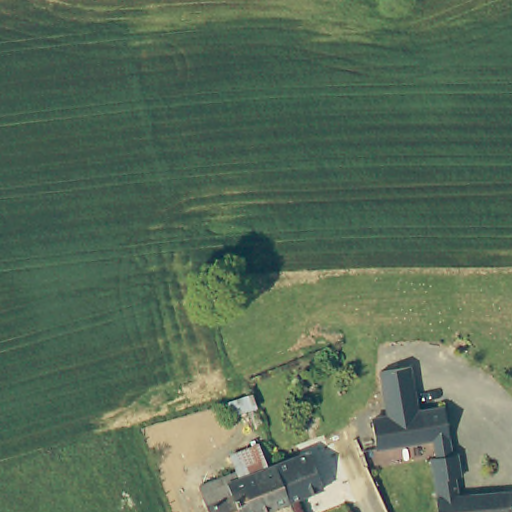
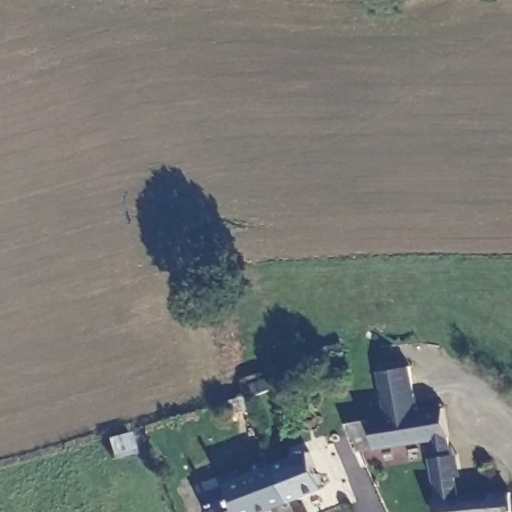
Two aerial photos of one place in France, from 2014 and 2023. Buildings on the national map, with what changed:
unchanged [(457,474),(452,476),(455,496),(473,494),(481,494),(508,493),(508,512),(434,512),(432,499),(427,458),(432,457),(429,440),(373,449),(367,421),(382,418),(374,372),(405,367),(413,412),(439,408),(445,437),(448,454),(453,453),(457,474)]
unchanged [(167,436),(149,443),(145,431),(163,424),(167,436)]
unchanged [(284,505),(266,512),(203,512),(194,489),(232,474),(226,458),(254,448),(262,470),(268,468),(284,505)]
unchanged [(268,468),(304,454),(318,491),(284,505),(268,468)]
unchanged [(184,491),(170,496),(164,481),(179,476),(184,491)]

